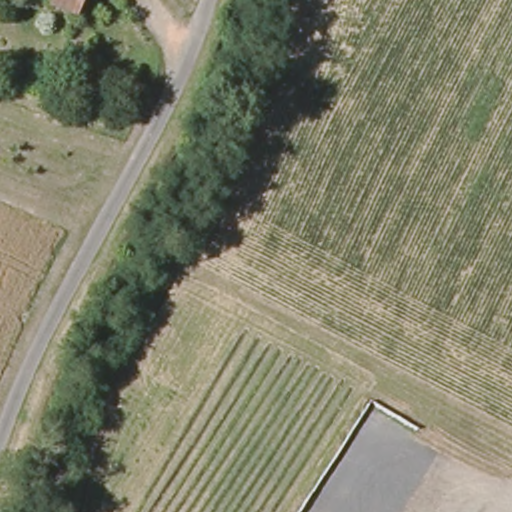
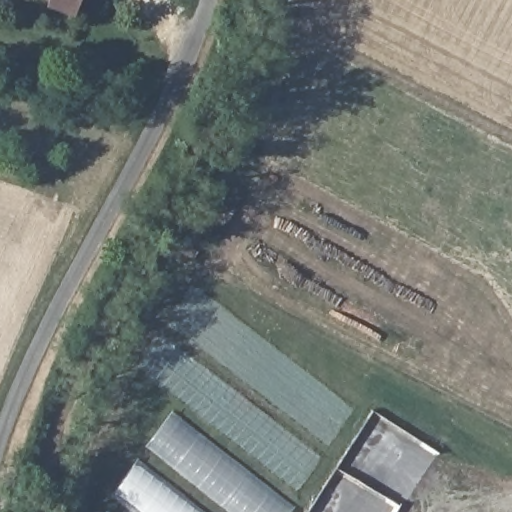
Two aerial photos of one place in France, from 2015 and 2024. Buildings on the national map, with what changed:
unchanged [(45,8),(48,0),(74,0),(68,16),(45,8)]
new [(287,502),(294,508),(291,512),(105,512),(113,499),(110,497),(172,411),(178,401),(146,377),(171,344),(321,458),(287,502)]

